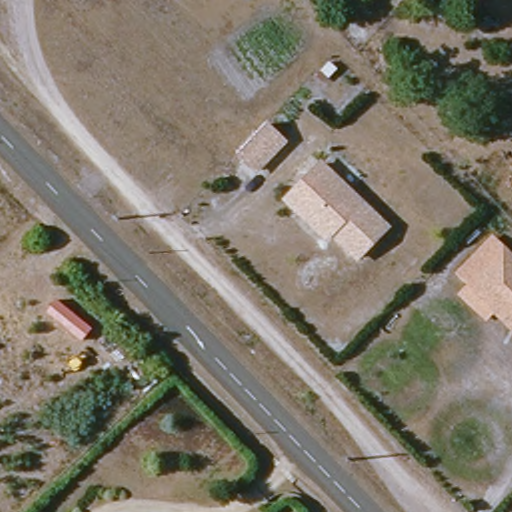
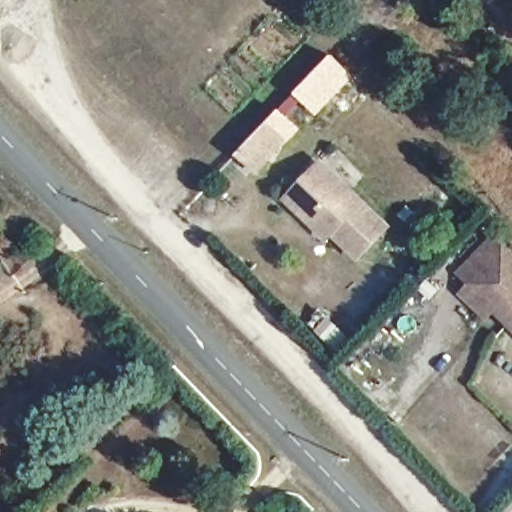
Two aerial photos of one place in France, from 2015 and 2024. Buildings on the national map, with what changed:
new [(295,94),(331,55),(354,77),(317,115),(295,94)]
unchanged [(240,155),(254,139),(267,125),(285,143),(258,172),(240,155)]
unchanged [(317,230),(290,206),(290,195),(318,164),(386,227),(358,258),(332,234),(327,239),(317,230)]
unchanged [(459,273),(476,254),(492,236),(503,247),(512,255),(512,321),(459,273)]

